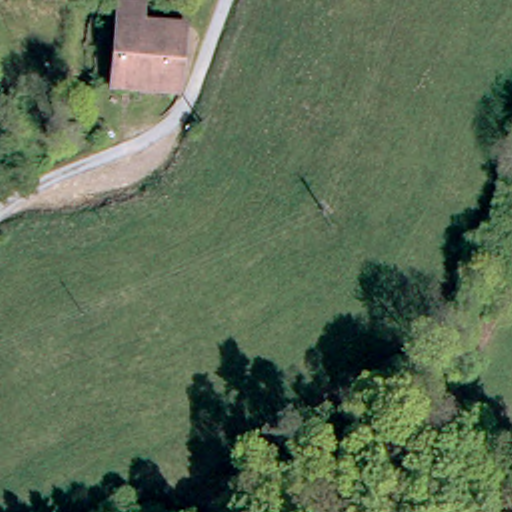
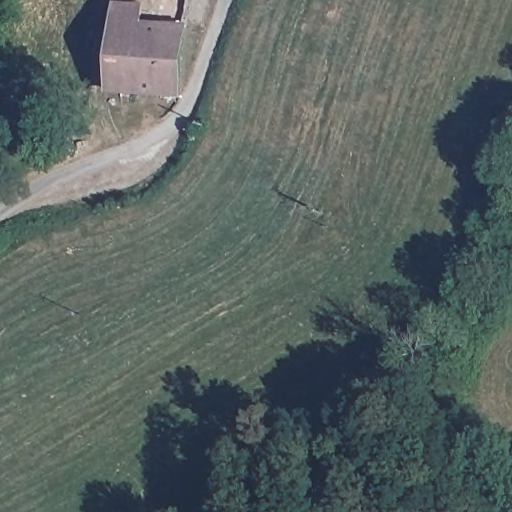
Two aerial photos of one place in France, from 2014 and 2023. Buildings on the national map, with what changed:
unchanged [(112,52),(132,52),(135,0),(181,2),(180,80),(175,85),(110,83),(112,52)]

